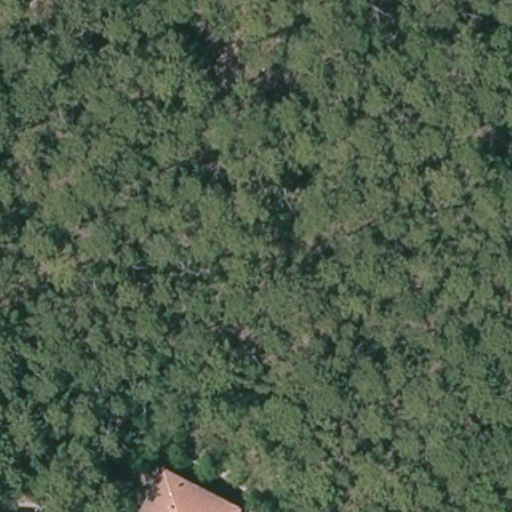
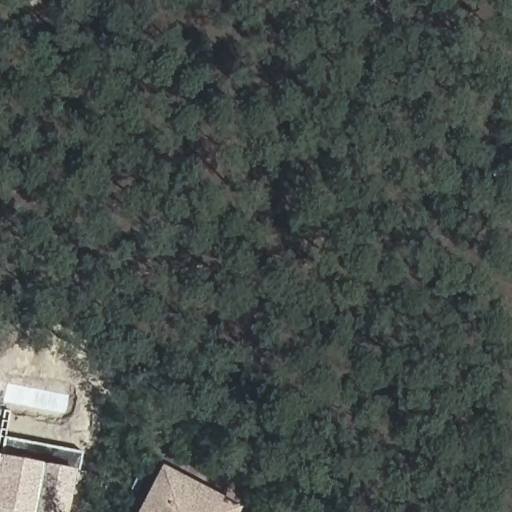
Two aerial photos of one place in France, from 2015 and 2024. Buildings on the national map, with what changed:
new [(0,510),(0,455),(4,456),(5,436),(83,453),(79,469),(70,512),(13,512),(0,510)]
unchanged [(232,512),(145,512),(168,469),(208,492),(235,507),(232,512)]

